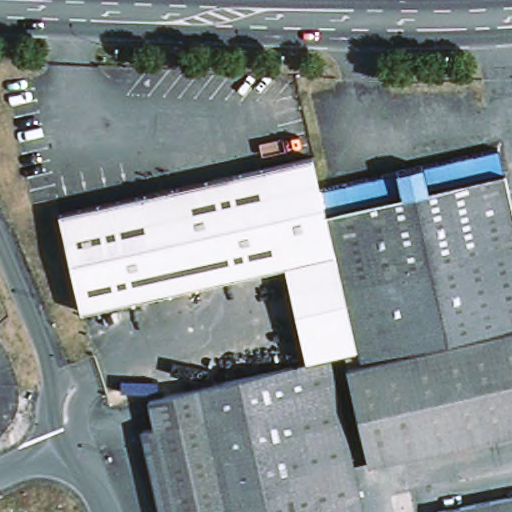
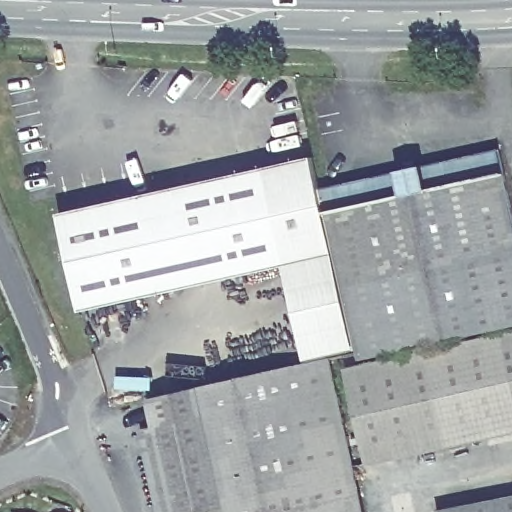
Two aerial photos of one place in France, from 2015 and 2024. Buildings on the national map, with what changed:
unchanged [(512,174),(512,323),(358,357),(357,350),(331,233),(320,184),(507,147),(512,174)]
unchanged [(312,157),(354,350),(308,361),(287,265),(80,311),(57,213),(312,157)]
unchanged [(368,461),(347,364),(359,361),(512,327),(512,429),(380,458),(368,461)]
unchanged [(362,512),(229,512),(227,503),(186,512),(160,512),(142,430),(159,426),(152,400),(330,357),(362,512)]
unchanged [(512,498),(512,512),(438,512),(438,511),(512,498)]

